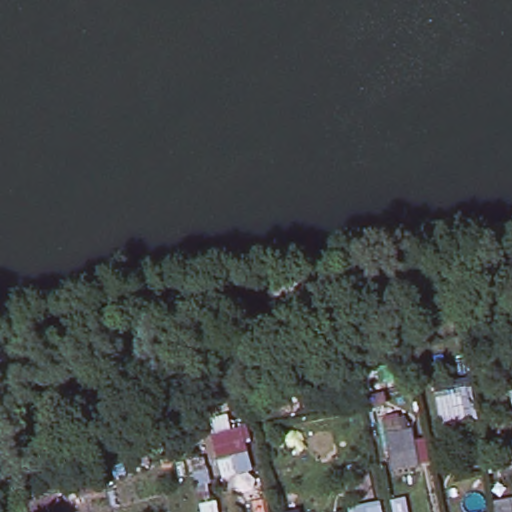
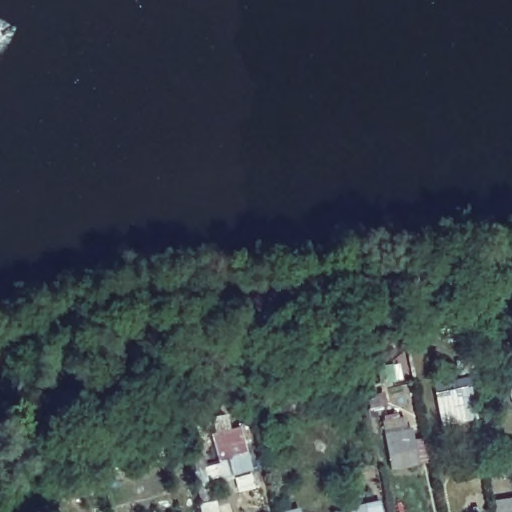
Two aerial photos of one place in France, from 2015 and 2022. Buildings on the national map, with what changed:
unchanged [(470,385),(478,421),(443,427),(438,391),(470,385)]
unchanged [(400,411),(401,415),(406,414),(408,427),(412,427),(414,438),(427,436),(432,462),(391,469),(382,414),(400,411)]
unchanged [(247,427),(251,439),(243,441),(245,451),(250,450),(254,468),(229,473),(225,457),(215,460),(210,437),(247,427)]
unchanged [(494,512),(492,500),(512,497),(512,512),(494,512)]
unchanged [(385,512),(349,512),(348,506),(383,501),(385,512)]

